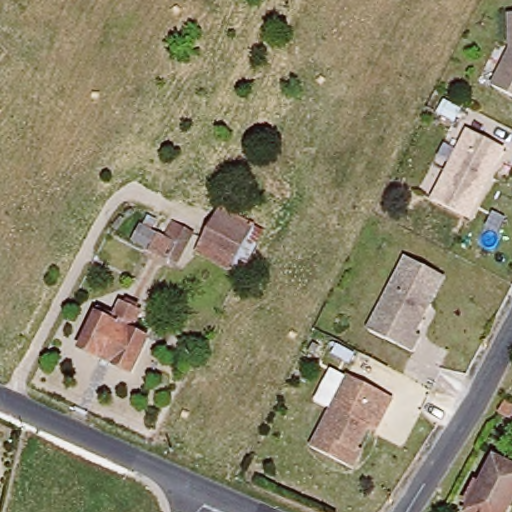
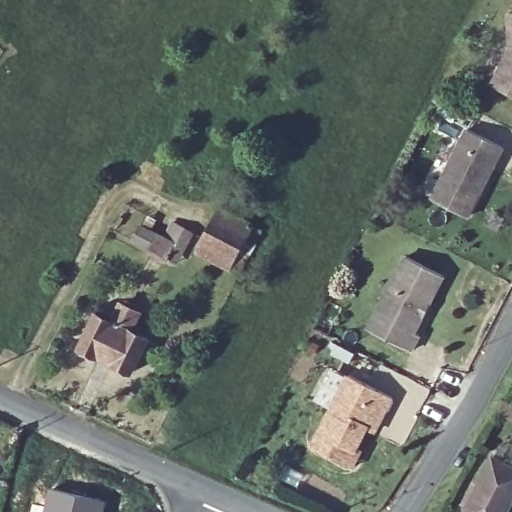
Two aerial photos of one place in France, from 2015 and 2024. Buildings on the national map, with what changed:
unchanged [(511,36),(508,1),(512,1),(512,82),(493,74),(511,36)]
unchanged [(434,200),(472,131),(507,150),(470,219),(434,200)]
unchanged [(196,247),(215,214),(249,232),(231,267),(196,247)]
unchanged [(180,267),(129,245),(139,225),(161,236),(171,221),(195,234),(180,267)]
unchanged [(372,305),(402,247),(440,267),(411,323),(416,326),(407,342),(379,327),(364,320),(372,305)]
unchanged [(92,317),(107,325),(116,306),(136,315),(128,335),(145,343),(128,376),(77,350),(92,317)]
unchanged [(312,442),(349,370),(393,393),(385,408),(376,426),(368,423),(349,461),(312,442)]
unchanged [(512,399),(512,417),(500,410),(508,396),(512,399)]
unchanged [(512,469),(512,499),(506,512),(462,512),(490,458),(512,469)]
new [(44,505),(49,487),(107,501),(104,512),(29,512),(32,502),(44,505)]

